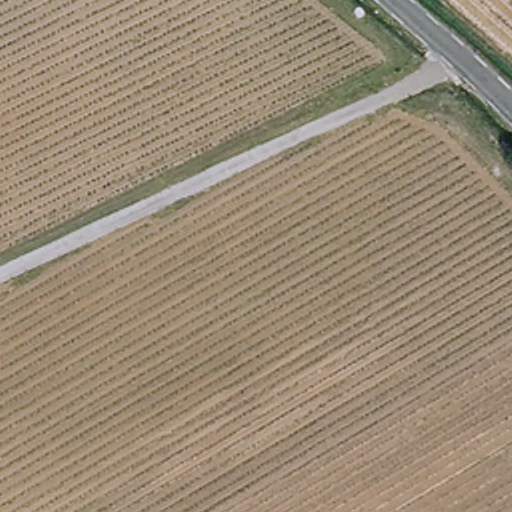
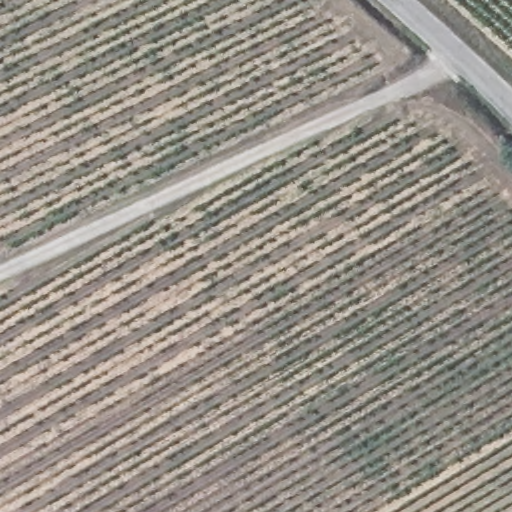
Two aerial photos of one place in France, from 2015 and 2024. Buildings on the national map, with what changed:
[]

